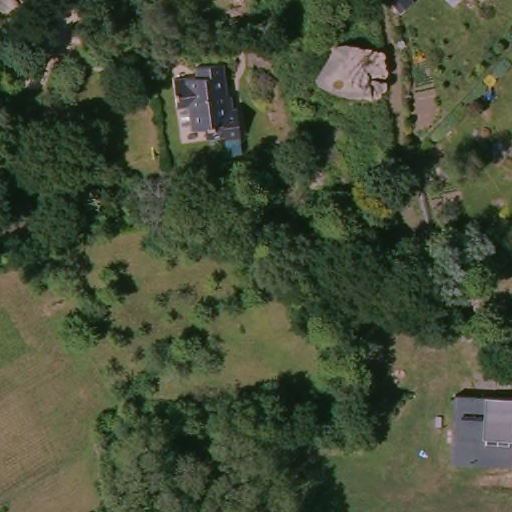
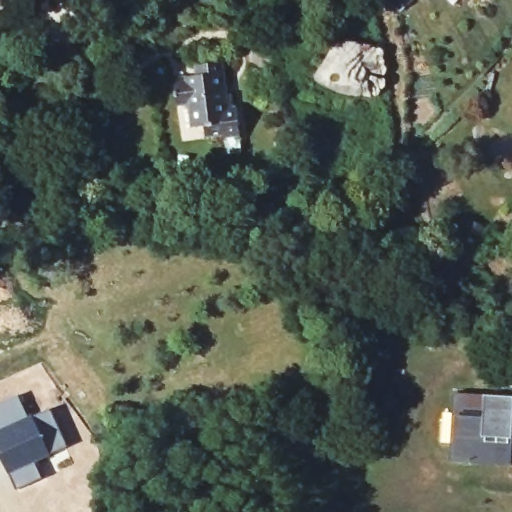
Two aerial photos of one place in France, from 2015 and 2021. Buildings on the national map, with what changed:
unchanged [(441,0),(454,0),(447,6),(441,0)]
unchanged [(460,0),(463,0),(462,1),(460,0)]
unchanged [(227,99),(234,98),(242,134),(223,136),(222,131),(205,134),(202,125),(188,126),(181,99),(172,99),(168,76),(189,74),(193,70),(193,61),(216,58),(227,99)]
unchanged [(455,393),(512,396),(512,463),(451,463),(455,393)]
new [(17,395),(27,418),(49,408),(66,446),(33,461),(41,478),(14,490),(0,457),(0,402),(17,395)]

